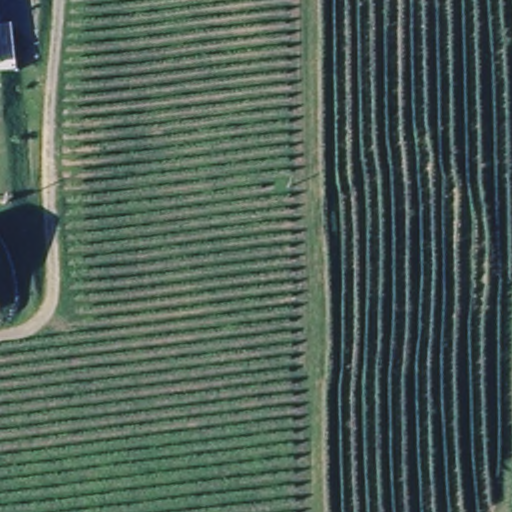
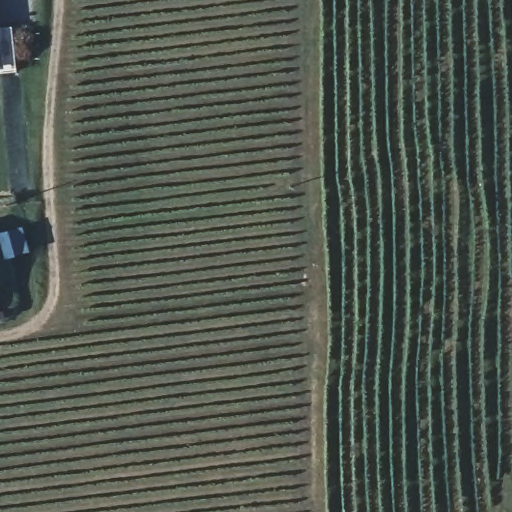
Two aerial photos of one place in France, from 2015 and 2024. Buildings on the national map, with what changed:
unchanged [(0,73),(0,45),(3,72),(0,73)]
unchanged [(0,308),(0,288),(6,305),(0,308)]

